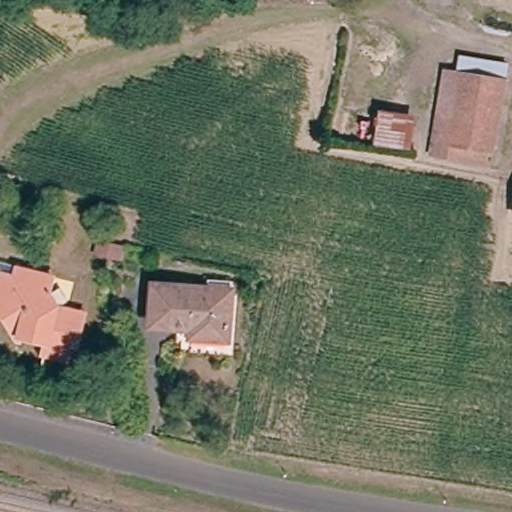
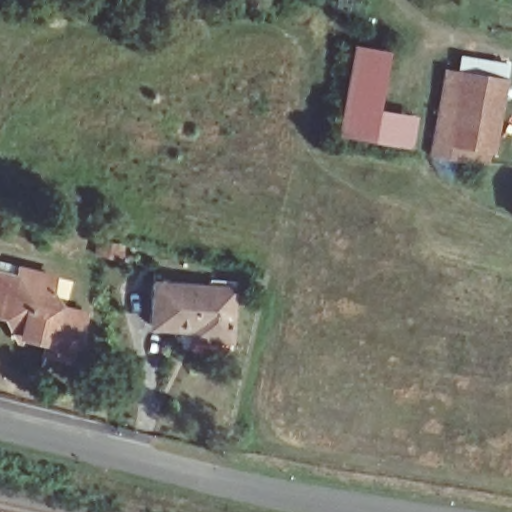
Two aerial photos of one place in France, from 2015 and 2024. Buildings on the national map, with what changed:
new [(336,135),(351,42),(388,49),(378,107),(415,114),(410,148),(336,135)]
unchanged [(503,80),(492,150),(489,149),(486,163),(434,154),(440,116),(452,118),(459,72),(503,80)]
demolished [(412,154),(339,138),(343,109),(381,115),(382,111),(420,114),(412,154)]
unchanged [(498,201),(502,181),(512,183),(512,204),(498,201)]
unchanged [(113,266),(103,263),(90,260),(94,244),(107,247),(116,250),(113,266)]
unchanged [(4,269),(23,273),(59,282),(56,298),(67,309),(89,314),(81,345),(73,344),(70,360),(49,355),(52,344),(16,335),(19,326),(0,321),(0,280),(4,269)]
unchanged [(216,286),(216,292),(234,294),(230,337),(195,334),(194,342),(178,341),(179,325),(154,323),(157,281),(216,286)]

